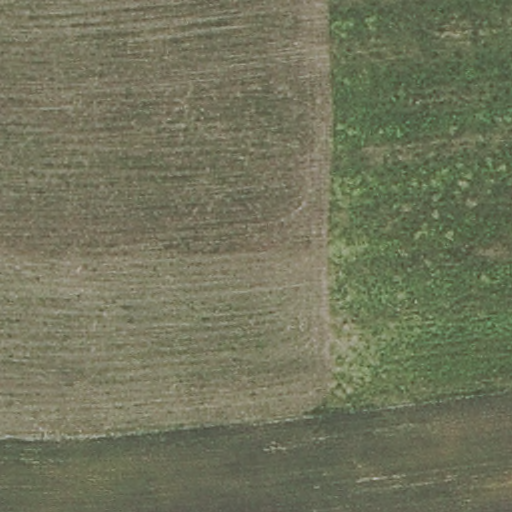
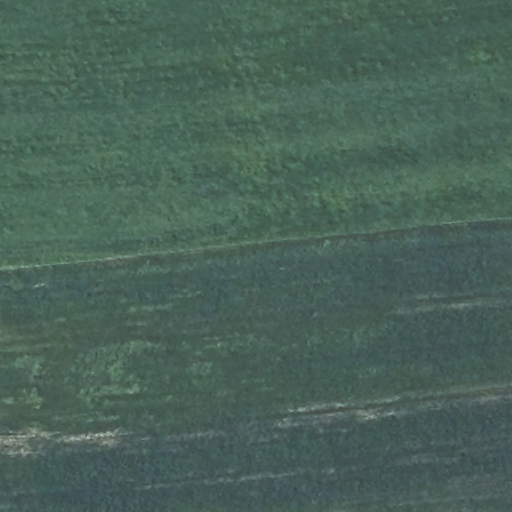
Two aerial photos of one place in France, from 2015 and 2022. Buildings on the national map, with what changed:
[]

